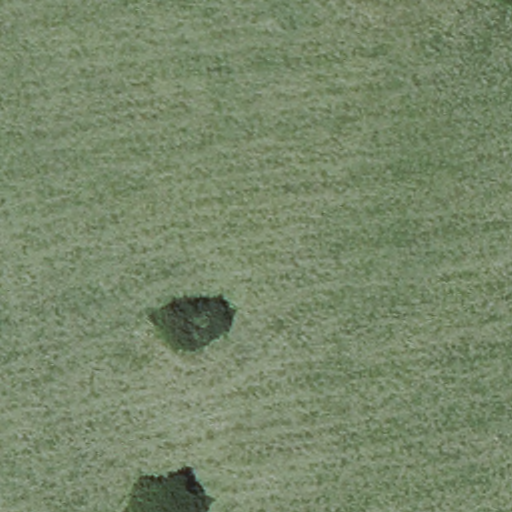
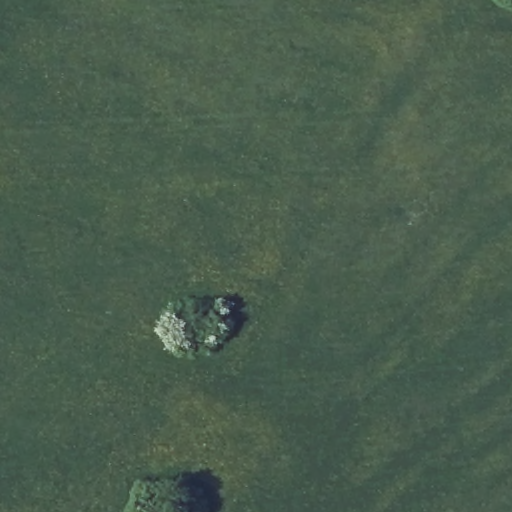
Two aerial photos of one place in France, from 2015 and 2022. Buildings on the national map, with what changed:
unchanged [(187,326),(193,325),(201,323),(204,336),(190,339),(189,335),(187,326)]

